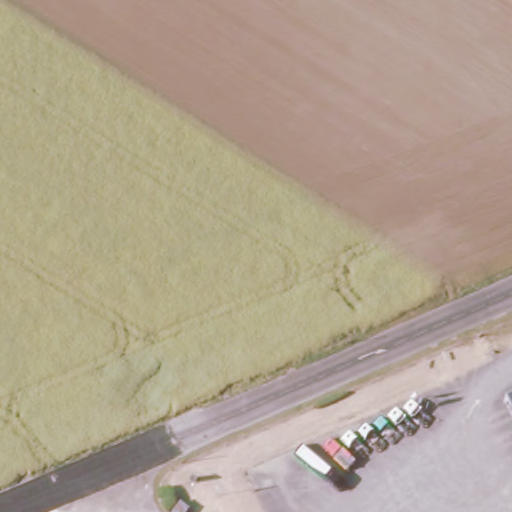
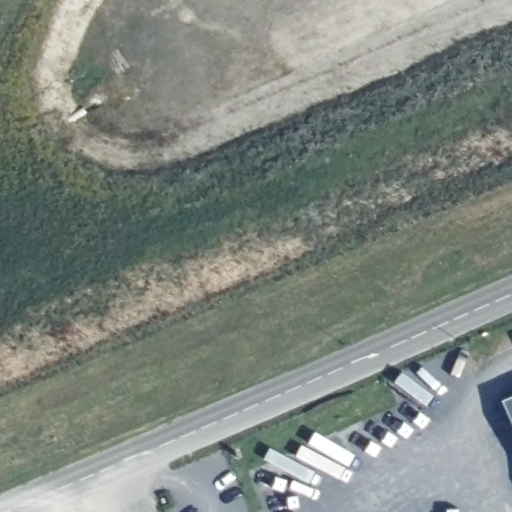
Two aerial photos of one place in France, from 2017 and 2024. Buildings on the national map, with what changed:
unchanged [(504,402),(512,398),(512,422),(504,402)]

